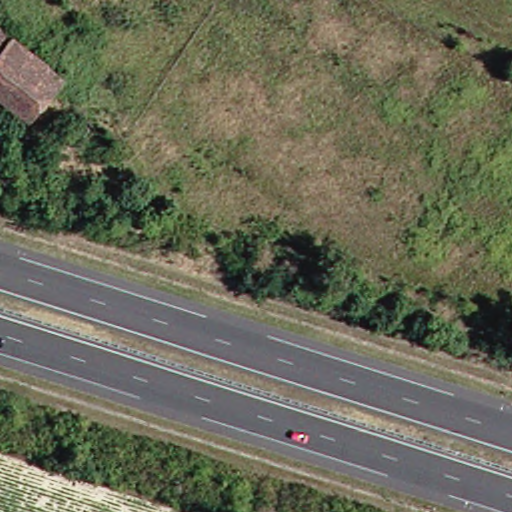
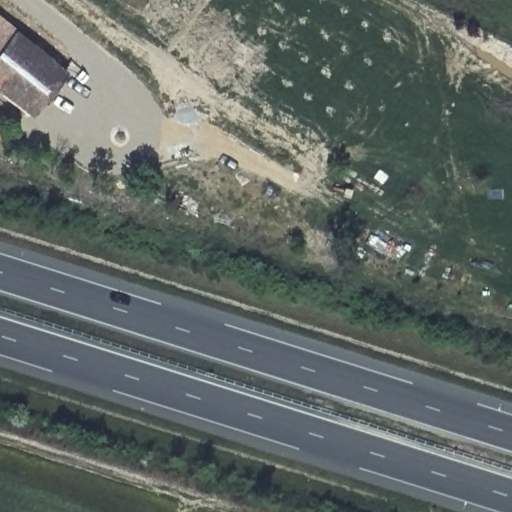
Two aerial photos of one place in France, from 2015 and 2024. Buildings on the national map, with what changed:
unchanged [(9,140),(0,132),(0,28),(56,75),(9,140)]

